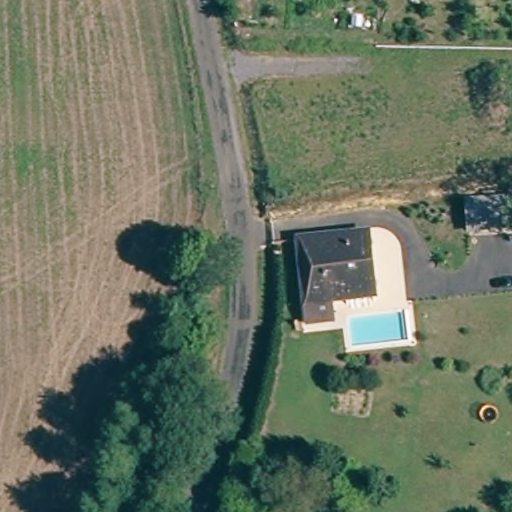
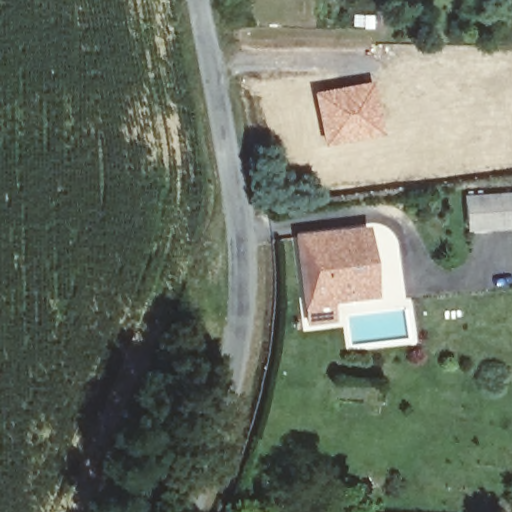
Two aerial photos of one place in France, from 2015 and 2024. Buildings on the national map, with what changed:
new [(372,80),(381,133),(321,146),(311,91),(372,80)]
unchanged [(505,208),(507,237),(466,240),(464,210),(505,208)]
unchanged [(303,308),(303,293),(304,227),(373,225),(376,292),(331,294),(330,310),(303,308)]

